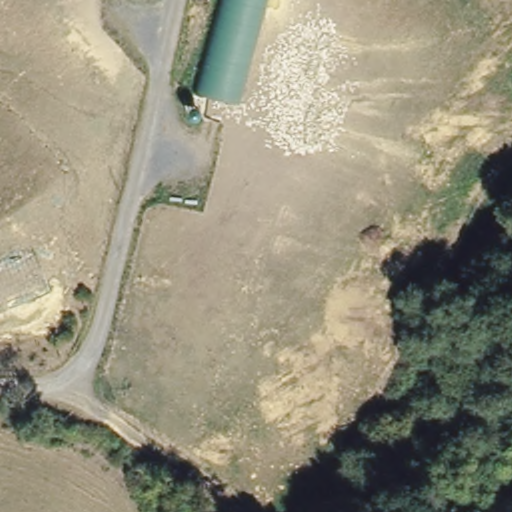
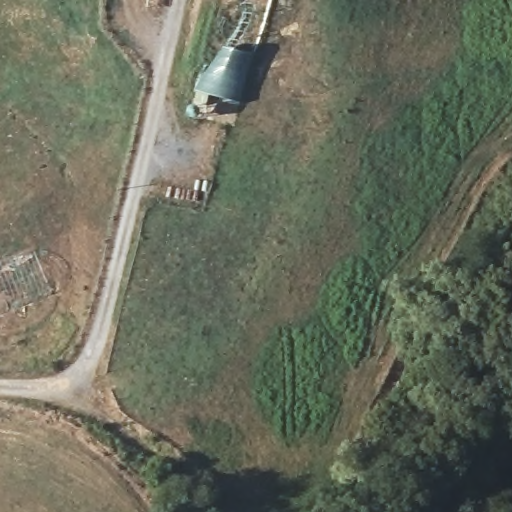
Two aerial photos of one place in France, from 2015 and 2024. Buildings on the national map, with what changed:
unchanged [(223,0),(263,0),(238,101),(201,90),(223,0)]

